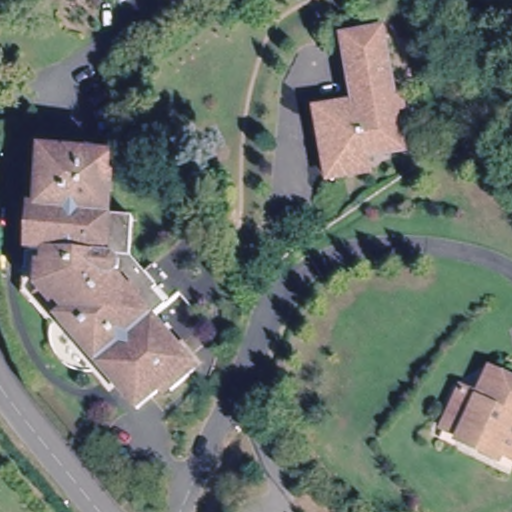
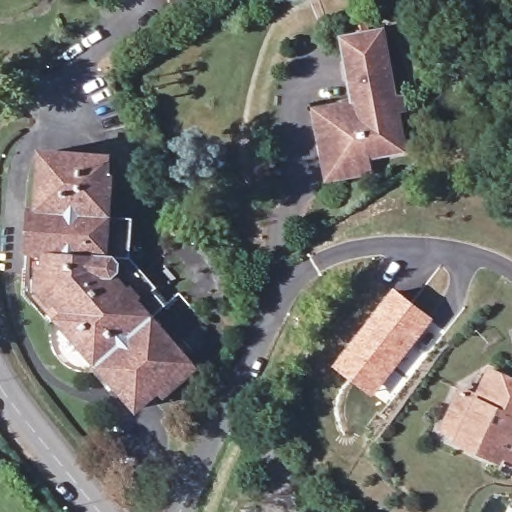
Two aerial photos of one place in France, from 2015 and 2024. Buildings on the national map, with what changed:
unchanged [(177,1),(178,0),(203,0),(187,13),(177,1)]
unchanged [(367,149),(370,169),(327,175),(316,104),(355,100),(346,34),(387,27),(403,143),(367,149)]
unchanged [(97,353),(70,315),(50,287),(50,241),(47,151),(102,151),(104,171),(109,170),(111,211),(131,211),(134,245),(171,297),(153,310),(192,369),(144,395),(132,403),(97,353)]
new [(393,287),(435,319),(373,397),(332,365),(393,287)]
unchanged [(502,440),(496,451),(457,431),(441,421),(454,398),(463,380),(478,387),(492,361),(512,372),(512,445),(502,440)]

